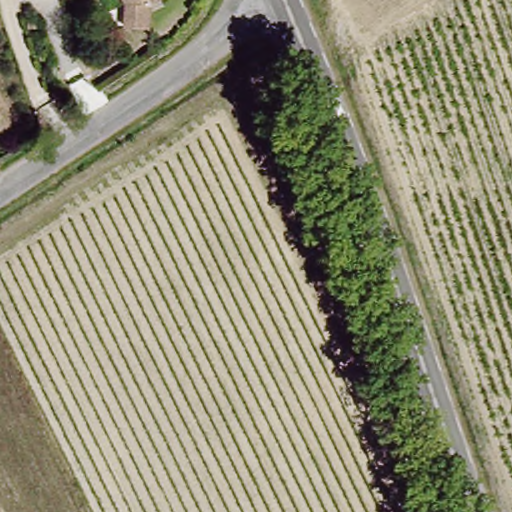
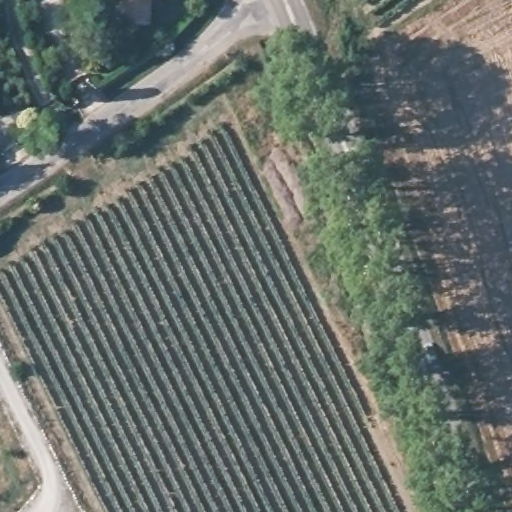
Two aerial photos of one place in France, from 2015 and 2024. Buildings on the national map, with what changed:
unchanged [(153,27),(128,24),(130,0),(161,0),(158,1),(153,27)]

